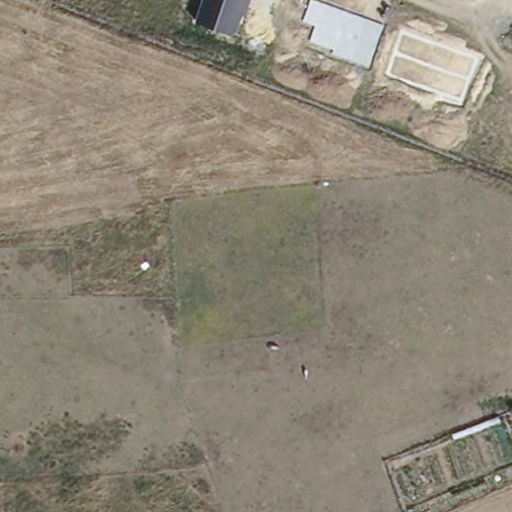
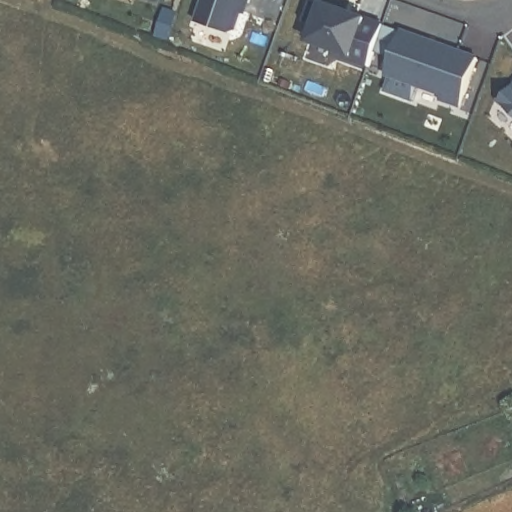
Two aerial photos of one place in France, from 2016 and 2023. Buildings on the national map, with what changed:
unchanged [(238,35),(196,20),(203,0),(251,0),(238,35)]
unchanged [(382,23),(367,66),(330,54),(332,47),(310,40),(314,25),(303,22),(311,0),(316,0),(382,23)]
new [(461,107),(385,76),(403,28),(478,57),(461,107)]
new [(512,113),(499,101),(512,87),(512,113)]

